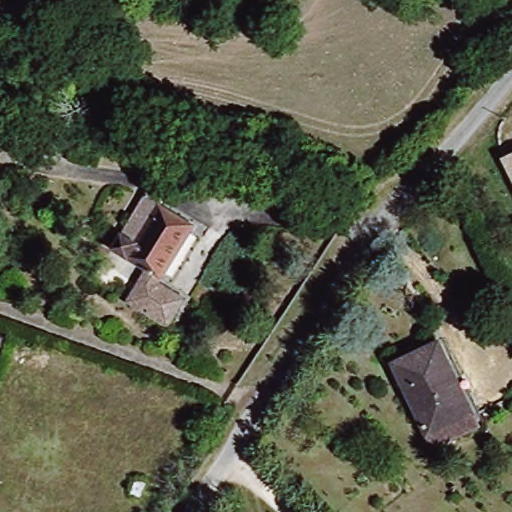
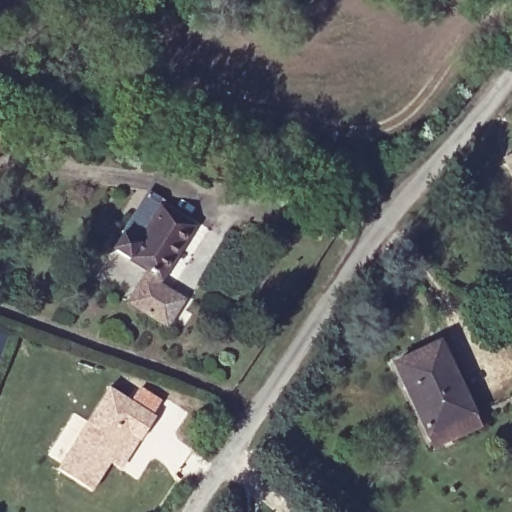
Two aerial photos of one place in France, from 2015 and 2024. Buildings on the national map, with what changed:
unchanged [(59,90),(54,122),(22,116),(27,85),(59,90)]
unchanged [(498,163),(512,157),(512,190),(498,163)]
unchanged [(192,225),(153,286),(181,305),(166,326),(127,300),(146,270),(114,247),(130,222),(140,207),(153,215),(161,205),(192,225)]
unchanged [(0,354),(0,337),(5,339),(0,354)]
unchanged [(427,434),(393,365),(441,341),(476,410),(482,425),(435,448),(427,434)]
new [(107,388),(153,416),(139,440),(126,432),(89,491),(56,470),(107,388)]

